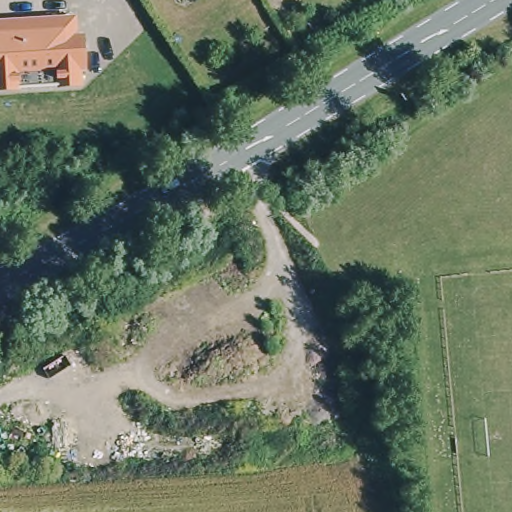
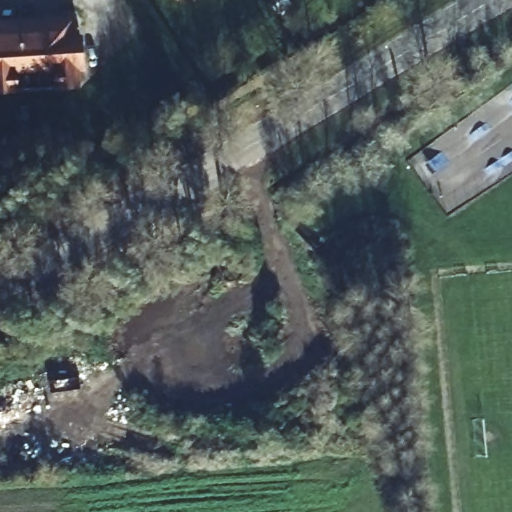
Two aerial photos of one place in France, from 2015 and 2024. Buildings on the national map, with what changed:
unchanged [(57,89),(57,86),(19,88),(19,91),(0,92),(0,20),(75,16),(77,34),(84,34),(87,71),(82,71),(82,87),(57,89)]

